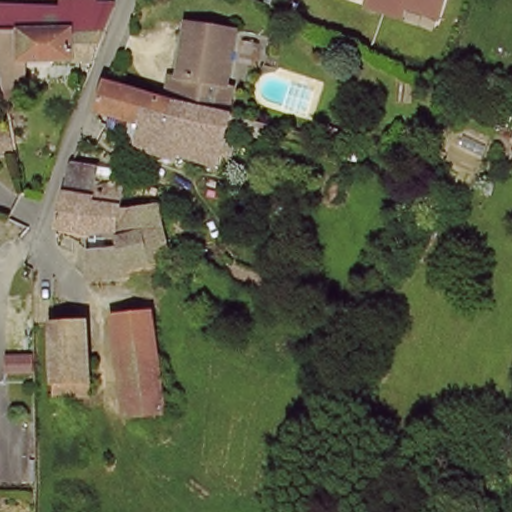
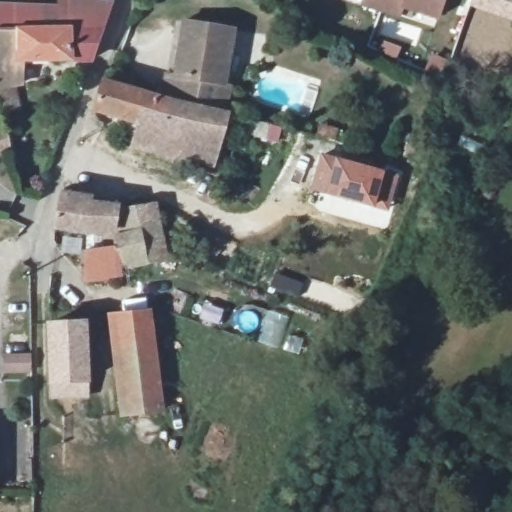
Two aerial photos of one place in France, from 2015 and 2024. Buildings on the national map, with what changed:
unchanged [(33,77),(25,79),(35,139),(22,141),(20,126),(18,122),(17,112),(13,92),(11,80),(8,65),(7,60),(1,24),(9,23),(5,0),(68,3),(84,0),(120,0),(106,39),(101,54),(34,54),(33,77)]
unchanged [(435,22),(401,8),(397,17),(379,10),(360,3),(362,0),(444,0),(435,22)]
unchanged [(175,75),(184,22),(233,31),(223,85),(230,86),(225,108),(225,111),(225,112),(195,105),(177,101),(166,98),(161,97),(162,93),(166,74),(175,75)]
unchanged [(105,82),(161,97),(166,98),(177,101),(195,105),(225,112),(225,111),(256,120),(267,123),(266,130),(241,123),(240,130),(224,126),(222,138),(202,133),(187,149),(168,155),(135,146),(141,122),(94,109),(101,80),(105,82)]
unchanged [(344,123),(341,135),(322,130),(325,118),(344,123)]
unchanged [(21,144),(4,147),(0,125),(18,122),(22,141),(21,144)]
new [(319,151),(400,172),(387,214),(308,191),(319,151)]
unchanged [(111,163),(125,172),(120,200),(113,198),(64,186),(63,186),(71,157),(111,163)]
unchanged [(56,220),(63,186),(64,186),(113,198),(120,200),(129,199),(152,196),(154,196),(163,236),(167,252),(115,264),(117,270),(111,273),(86,273),(88,243),(88,226),(56,220)]
new [(275,270),(304,280),(298,298),(268,287),(275,270)]
unchanged [(116,315),(150,311),(156,355),(157,360),(164,408),(158,409),(150,410),(128,413),(116,315)]
unchanged [(87,315),(91,347),(92,388),(60,389),(56,318),(87,315)]

